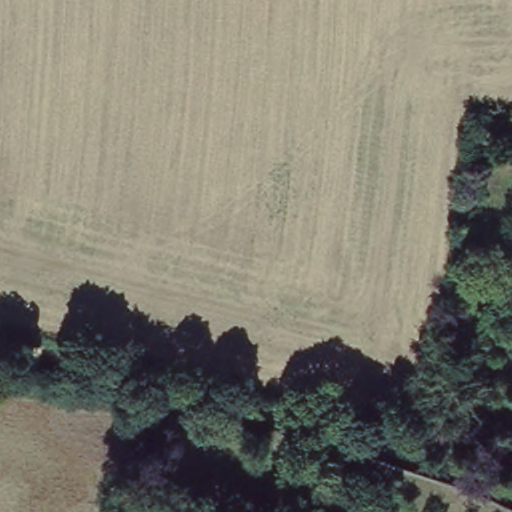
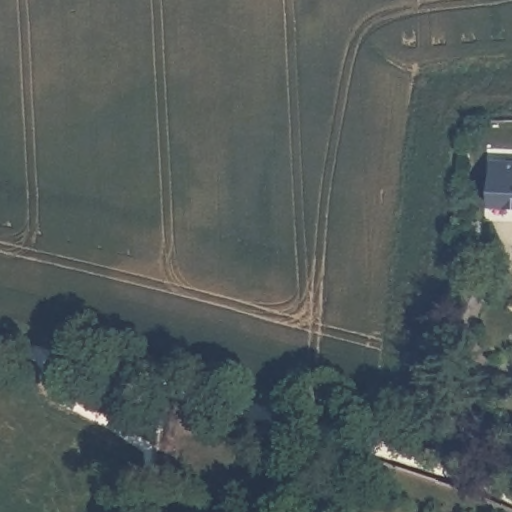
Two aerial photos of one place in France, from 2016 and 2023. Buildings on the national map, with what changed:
new [(512,157),(512,209),(485,209),(485,156),(512,157)]

